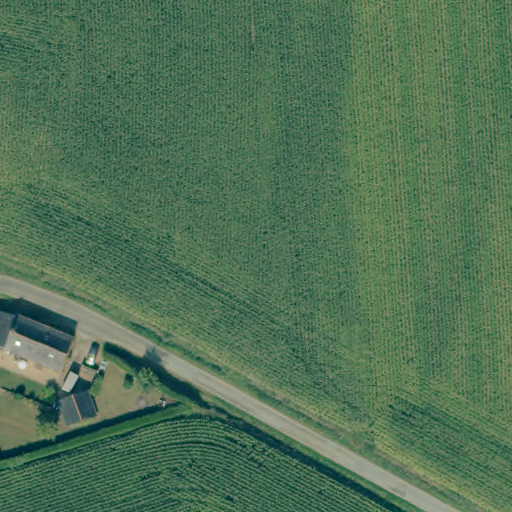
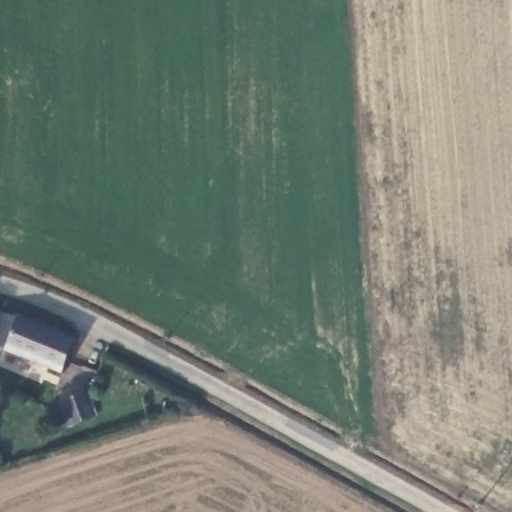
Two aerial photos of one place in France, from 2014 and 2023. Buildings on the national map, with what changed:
unchanged [(0,345),(0,343),(0,312),(2,307),(12,313),(80,344),(67,374),(0,345)]
unchanged [(59,403),(87,393),(95,417),(67,427),(59,403)]

